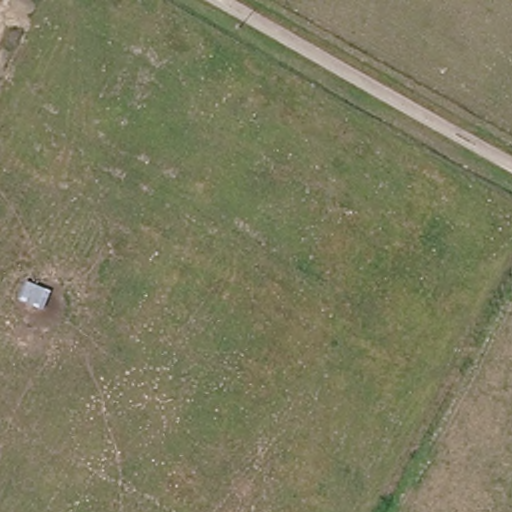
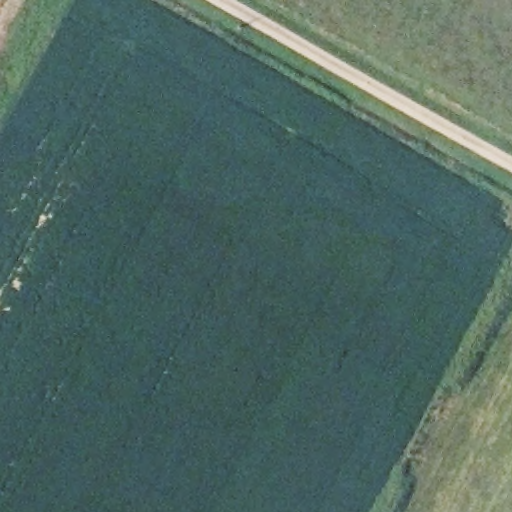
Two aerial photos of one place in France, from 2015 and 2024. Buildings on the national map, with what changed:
[]

